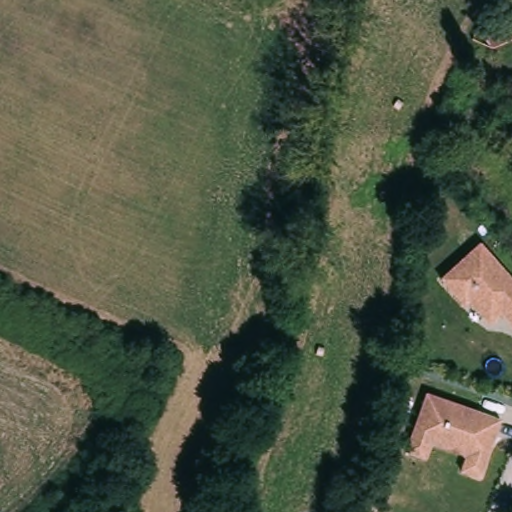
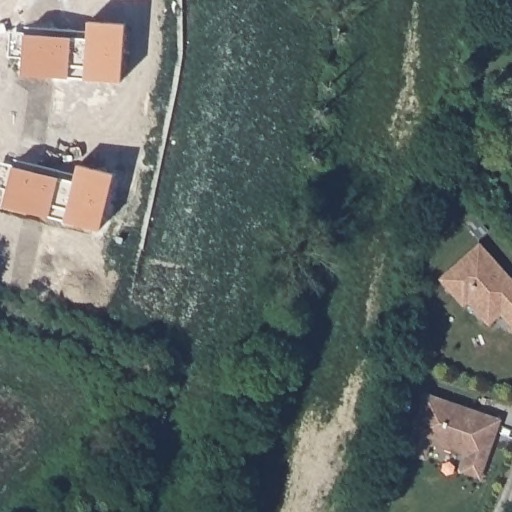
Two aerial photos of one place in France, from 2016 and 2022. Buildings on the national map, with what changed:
new [(25,27),(88,30),(88,21),(126,23),(122,89),(23,83),(25,27)]
unchanged [(512,41),(497,47),(492,35),(512,28),(512,41)]
new [(16,151),(77,165),(79,156),(115,164),(113,174),(100,229),(3,205),(16,151)]
unchanged [(512,326),(503,313),(485,325),(467,304),(462,309),(435,277),(478,242),(512,279),(512,326)]
unchanged [(423,392),(501,419),(480,479),(458,472),(464,456),(430,446),(424,460),(401,453),(423,392)]

